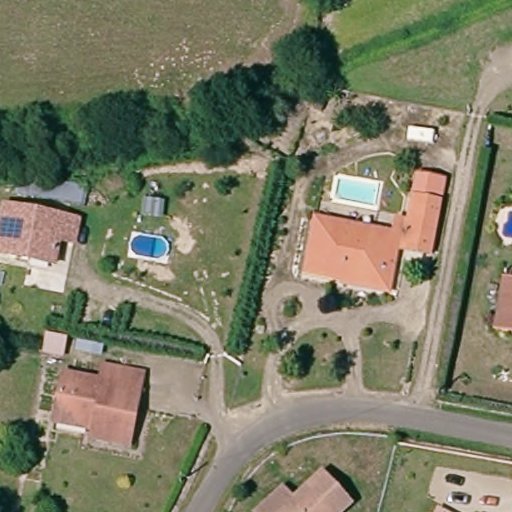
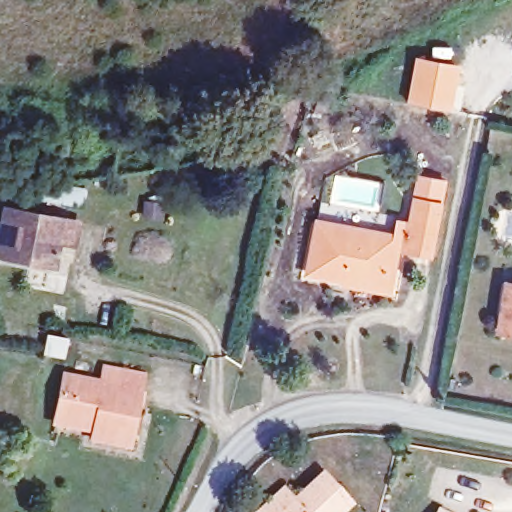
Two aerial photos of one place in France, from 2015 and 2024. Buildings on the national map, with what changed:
new [(414,56),(462,65),(453,111),(406,103),(414,56)]
unchanged [(391,250),(384,289),(306,272),(317,220),(391,235),(395,220),(407,223),(413,197),(417,176),(441,180),(436,203),(427,256),(391,250)]
unchanged [(31,255),(30,260),(0,254),(0,208),(1,205),(60,216),(76,219),(72,244),(55,241),(52,259),(31,255)]
unchanged [(498,323),(505,282),(512,283),(512,336),(496,333),(498,323)]
unchanged [(71,357),(51,354),(55,333),(75,337),(71,357)]
unchanged [(68,381),(106,388),(109,373),(128,376),(148,381),(145,396),(133,456),(96,448),(98,437),(59,428),(61,417),(68,381)]
unchanged [(294,499),(321,470),(338,487),(350,498),(336,512),(259,512),(283,488),(294,499)]
unchanged [(442,512),(433,512),(435,508),(442,512)]

